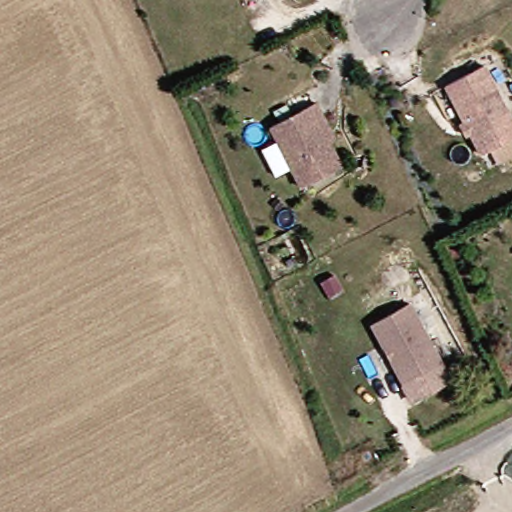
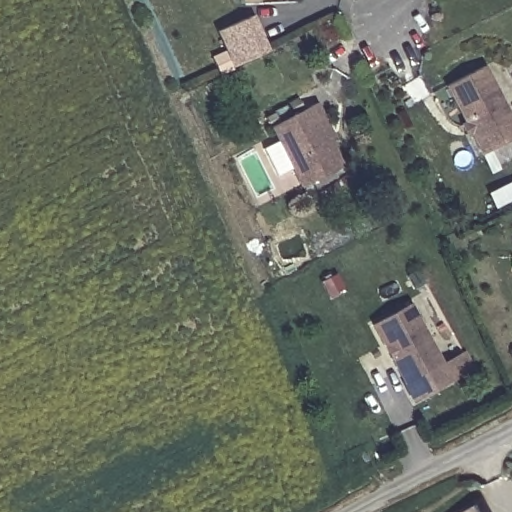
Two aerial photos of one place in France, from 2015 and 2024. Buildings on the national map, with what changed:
new [(249,16),(267,52),(233,69),(215,33),(249,16)]
unchanged [(458,126),(464,124),(445,86),(483,67),(512,124),(512,140),(480,156),(469,134),(463,137),(458,126)]
unchanged [(348,165),(308,185),(278,124),(324,102),(331,116),(325,119),(335,139),(348,165)]
unchanged [(437,369),(398,389),(365,325),(403,305),(437,369)]
new [(485,512),(467,512),(480,504),(485,512)]

